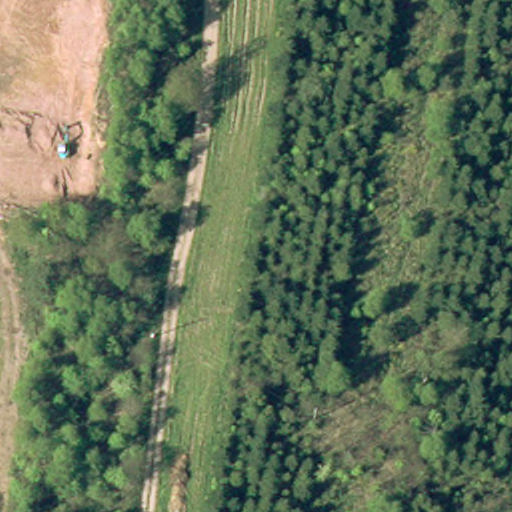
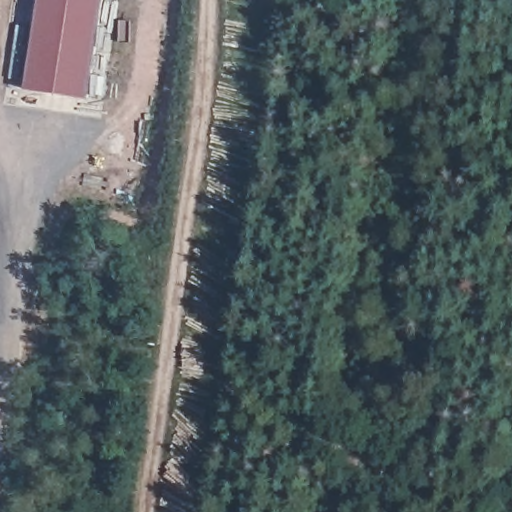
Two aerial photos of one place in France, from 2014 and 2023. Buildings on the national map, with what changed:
new [(25,89),(38,0),(102,0),(88,98),(25,89)]

